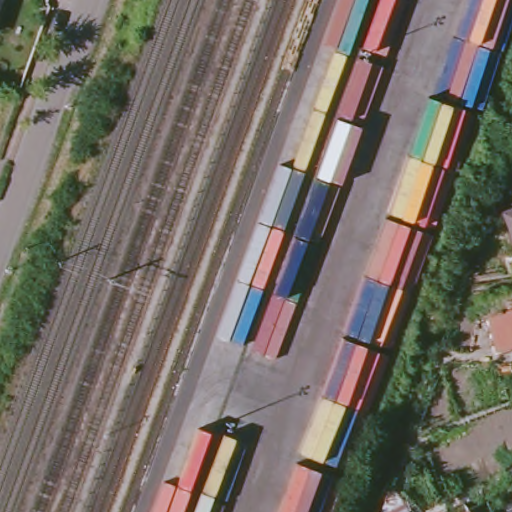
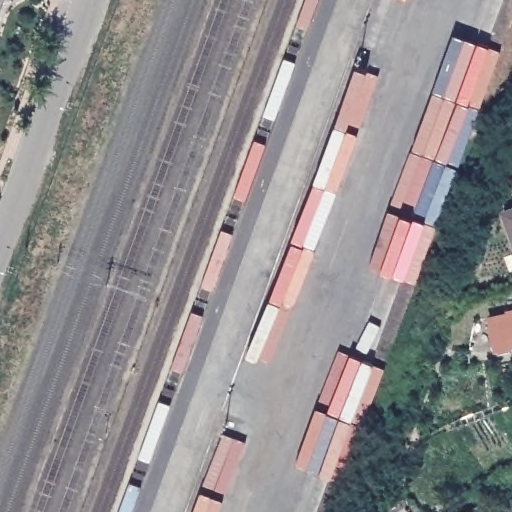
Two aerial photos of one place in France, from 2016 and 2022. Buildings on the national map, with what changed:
unchanged [(502,189),(511,146),(512,147),(512,190),(502,189)]
unchanged [(503,212),(512,209),(512,235),(503,212)]
unchanged [(497,347),(490,318),(508,312),(509,308),(512,308),(512,334),(512,342),(497,347)]
unchanged [(469,512),(468,512),(469,511),(469,512)]

